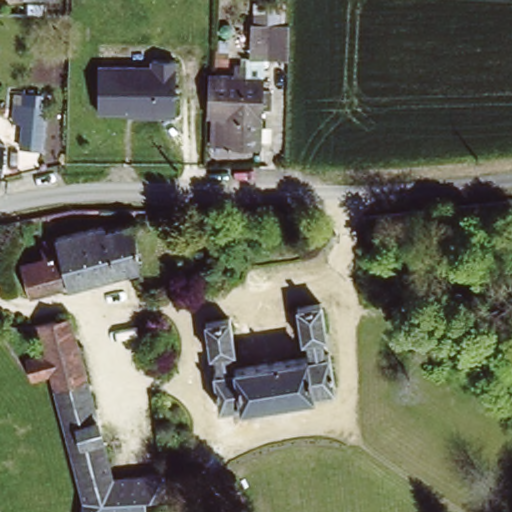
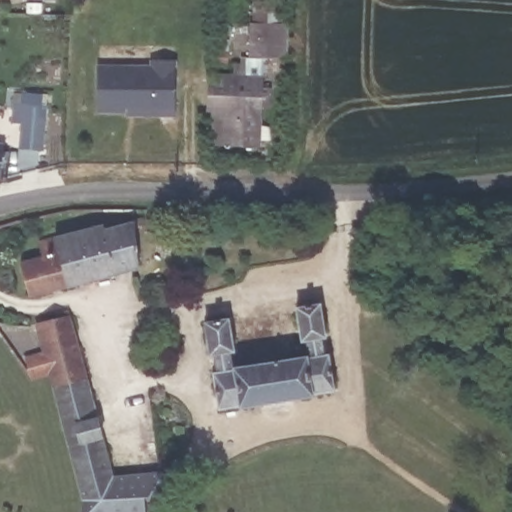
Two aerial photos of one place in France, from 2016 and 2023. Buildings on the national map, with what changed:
unchanged [(250,16),(253,17),(253,8),(267,9),(267,17),(287,18),(285,56),(248,54),(250,16)]
unchanged [(123,114),(94,113),(95,69),(148,69),(148,62),(172,62),(172,119),(154,119),(123,119),(123,114)]
unchanged [(210,79),(262,80),(263,94),(267,94),(267,110),(262,110),(260,151),(227,150),(228,122),(208,122),(210,79)]
unchanged [(39,108),(42,150),(22,150),(20,125),(10,125),(8,109),(39,108)]
unchanged [(40,261),(35,244),(100,230),(102,235),(130,228),(125,215),(138,215),(141,225),(160,220),(164,235),(132,243),(133,272),(26,297),(18,266),(40,261)]
unchanged [(230,320),(235,350),(230,351),(232,371),(255,369),(255,358),(281,356),(282,365),(305,362),(303,343),(298,344),(293,311),(320,308),(324,340),(320,341),(322,360),(327,360),(332,395),(216,410),(211,373),(217,372),(215,355),(208,356),(204,323),(230,320)]
unchanged [(55,358),(47,328),(73,321),(117,482),(163,476),(166,501),(145,503),(145,512),(92,512),(92,495),(61,378),(40,383),(34,363),(55,358)]

